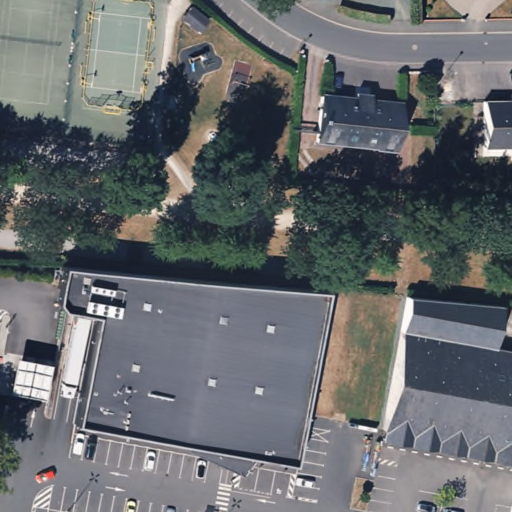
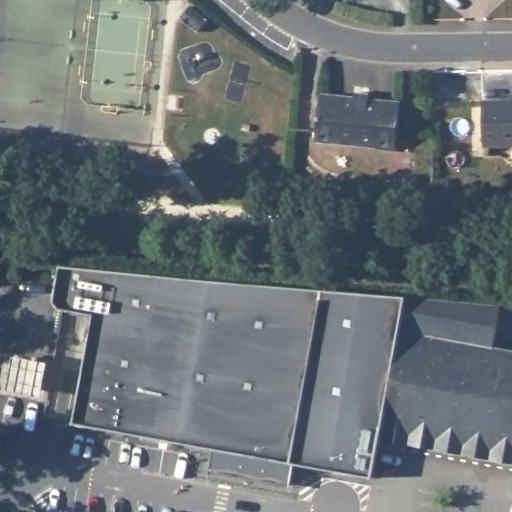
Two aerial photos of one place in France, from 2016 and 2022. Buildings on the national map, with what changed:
unchanged [(366,91),(366,99),(396,102),(391,146),(313,140),(317,94),(351,98),(352,90),(366,91)]
unchanged [(485,104),(512,103),(512,144),(485,145),(485,104)]
unchanged [(323,291),(292,465),(252,459),(241,474),(192,447),(72,426),(94,316),(54,309),(60,265),(323,291)]
new [(408,295),(402,329),(384,428),(370,478),(292,465),(323,291),(408,295)]
unchanged [(500,304),(493,344),(402,329),(408,295),(500,304)]
unchanged [(440,438),(384,428),(402,329),(493,344),(512,348),(512,461),(438,448),(440,438)]
unchanged [(49,362),(42,399),(3,393),(9,357),(49,362)]

